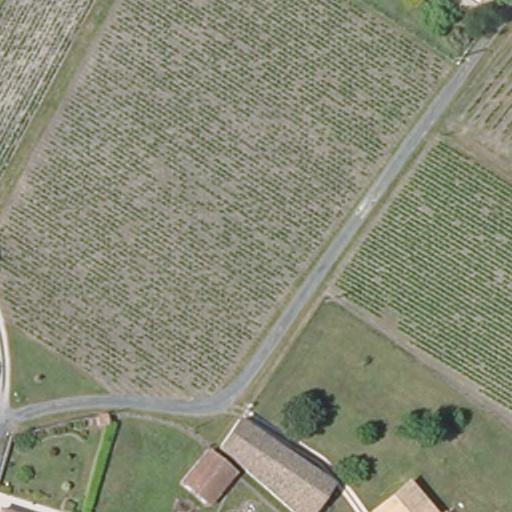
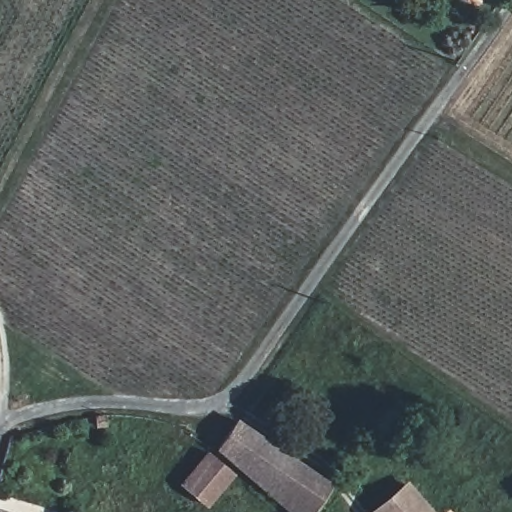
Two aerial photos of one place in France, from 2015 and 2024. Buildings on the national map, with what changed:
unchanged [(480,10),(465,0),(485,0),(480,10)]
unchanged [(252,484),(217,458),(238,428),(274,454),(252,484)]
unchanged [(317,512),(290,512),(252,484),(274,454),(329,494),(317,512)]
unchanged [(232,479),(202,511),(177,487),(202,457),(232,479)]
unchanged [(415,512),(383,512),(397,496),(415,512)]

